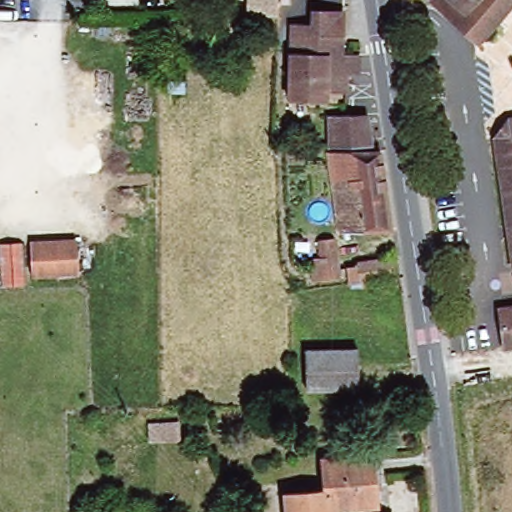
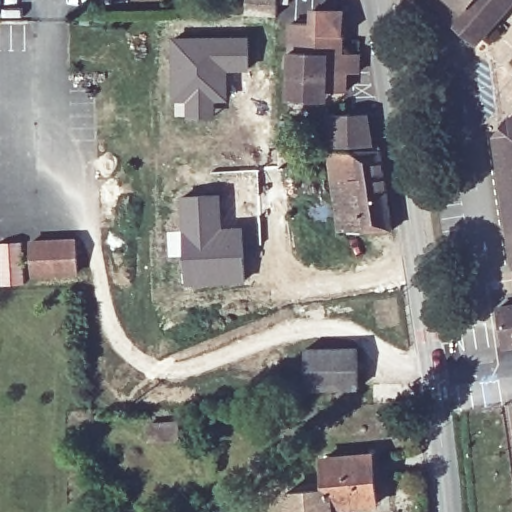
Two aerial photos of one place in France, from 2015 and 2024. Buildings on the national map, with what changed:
unchanged [(248,16),(247,0),(276,0),(275,14),(248,16)]
unchanged [(435,1),(435,0),(512,0),(512,6),(482,41),(435,1)]
unchanged [(311,99),(288,99),(290,24),(311,25),(311,11),(340,13),(339,54),(358,54),(358,72),(345,71),(345,91),(325,91),(325,100),(311,99)]
new [(249,35),(249,71),(229,71),(228,103),(216,103),(215,119),(174,118),(173,99),(170,99),(169,38),(249,35)]
unchanged [(333,147),(332,116),(352,116),(371,116),(371,121),(376,146),(333,147)]
unchanged [(493,137),(506,119),(512,118),(512,266),(493,137)]
unchanged [(386,151),(397,230),(341,230),(331,153),(386,151)]
new [(180,230),(177,196),(221,193),(225,225),(243,225),(246,285),(185,287),(183,257),(167,258),(166,231),(180,230)]
unchanged [(317,281),(313,260),(325,258),(321,235),(337,233),(341,255),(345,276),(317,281)]
unchanged [(72,277),(29,278),(29,245),(30,246),(72,245),(72,257),(72,277)]
unchanged [(0,246),(20,246),(20,286),(0,286),(0,246)]
unchanged [(352,269),(362,267),(362,263),(377,260),(391,258),(395,277),(380,279),(354,284),(352,269)]
unchanged [(500,347),(495,309),(512,307),(512,346),(500,347)]
unchanged [(305,350),(356,349),(357,389),(305,390),(305,350)]
unchanged [(323,490),(320,458),(371,454),(376,504),(331,508),(332,512),(286,512),(285,493),(323,490)]

